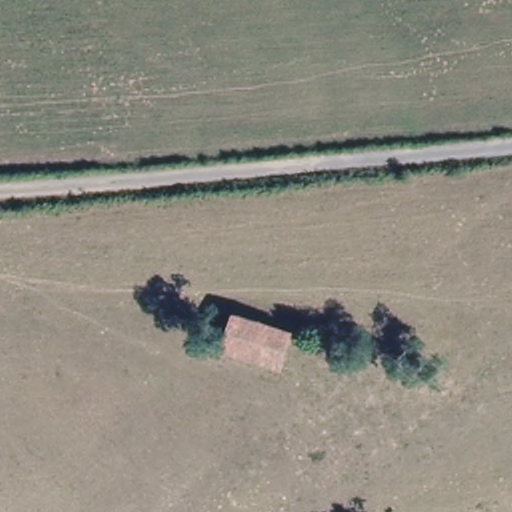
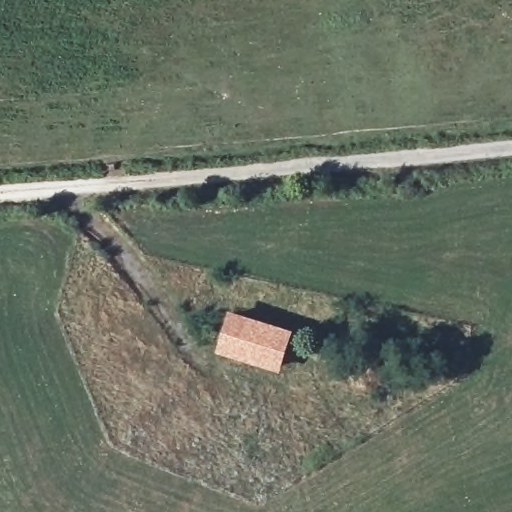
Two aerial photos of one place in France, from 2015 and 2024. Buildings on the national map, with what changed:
unchanged [(289,329),(282,358),(221,341),(230,311),(289,329)]

